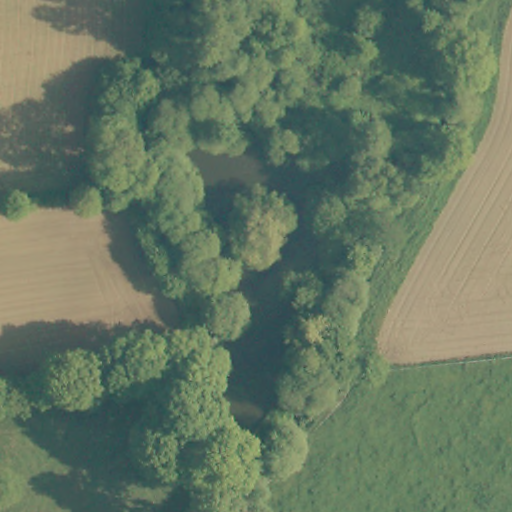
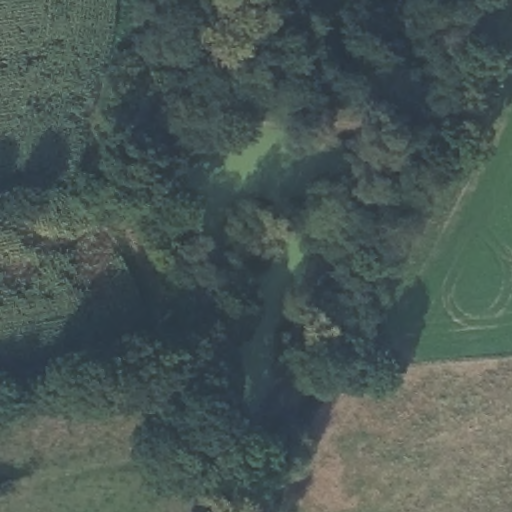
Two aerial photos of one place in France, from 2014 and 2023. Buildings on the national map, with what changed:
[]

